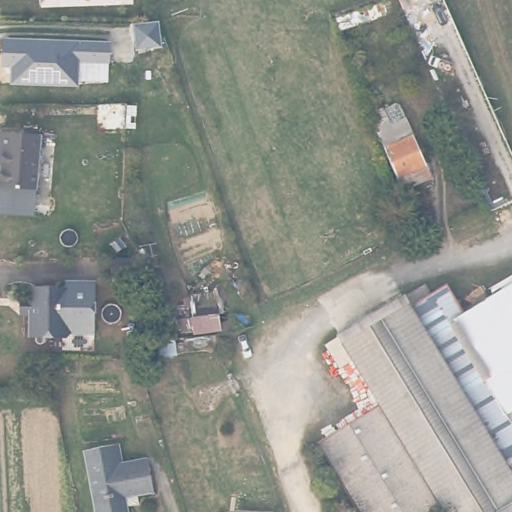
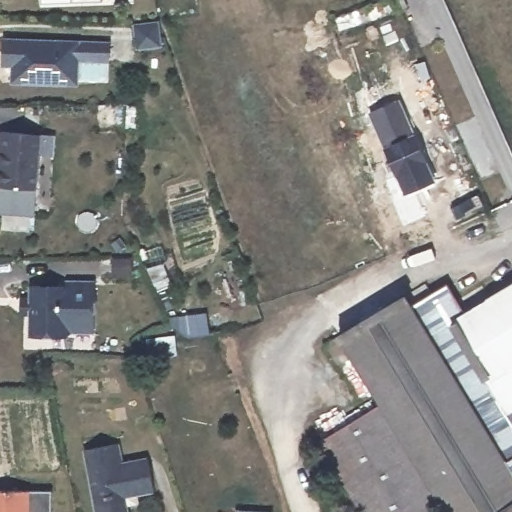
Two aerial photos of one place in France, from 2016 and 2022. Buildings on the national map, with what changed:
unchanged [(388,0),(390,0),(393,10),(354,23),(339,28),(336,16),(349,12),(388,0)]
unchanged [(109,65),(78,63),(78,65),(77,88),(12,86),(13,68),(3,68),(3,62),(3,56),(4,42),(109,46),(109,65)]
unchanged [(432,180),(402,193),(384,150),(370,118),(384,112),(395,107),(400,108),(407,121),(414,137),(432,180)]
unchanged [(45,133),(41,188),(4,185),(5,164),(0,164),(1,148),(3,129),(45,133)]
unchanged [(131,275),(117,275),(117,257),(130,257),(131,275)]
unchanged [(72,279),(101,280),(100,332),(78,331),(73,336),(56,336),(52,330),(36,330),(36,315),(26,314),(26,295),(36,295),(37,284),(72,285),(72,279)]
unchanged [(448,288),(467,319),(512,292),(512,512),(446,512),(444,510),(441,512),(356,512),(317,447),(381,408),(339,339),(404,300),(411,310),(448,288)]
unchanged [(148,340),(176,337),(177,353),(149,355),(148,340)]
unchanged [(127,512),(95,512),(84,454),(119,448),(123,468),(148,463),(154,496),(137,499),(139,509),(126,511),(127,512)]
new [(49,490),(49,512),(0,512),(0,489),(30,490),(49,490)]
unchanged [(267,512),(230,512),(230,507),(267,509),(267,512)]

